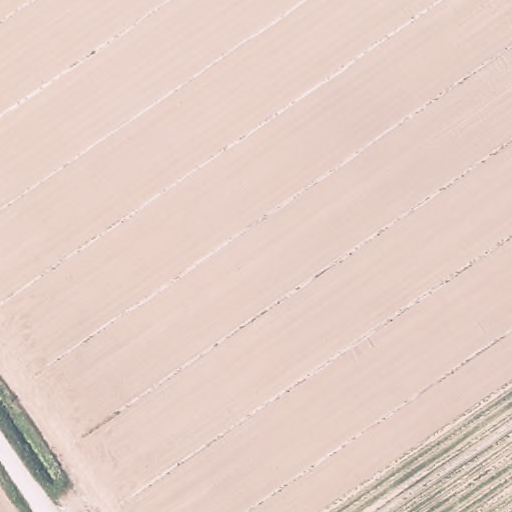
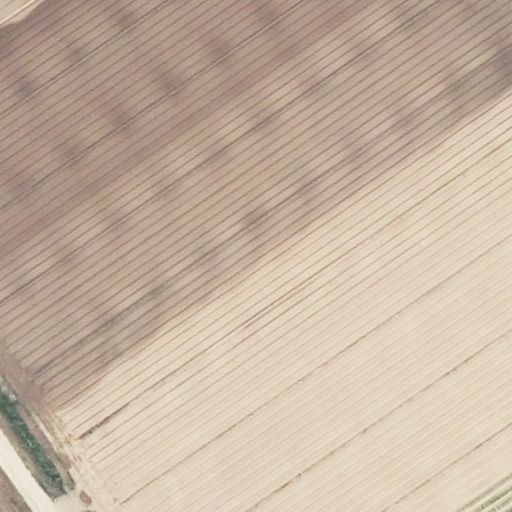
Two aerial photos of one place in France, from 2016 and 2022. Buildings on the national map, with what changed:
[]

